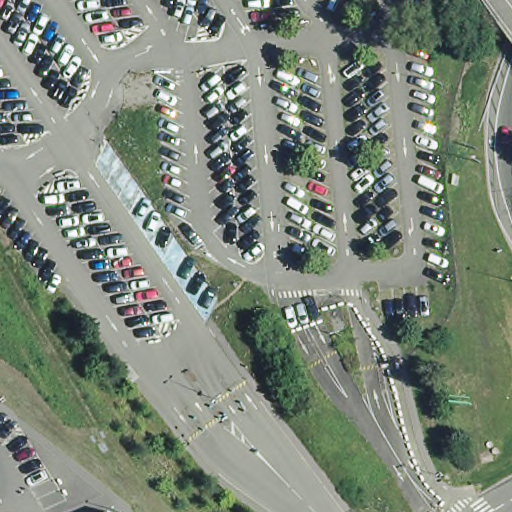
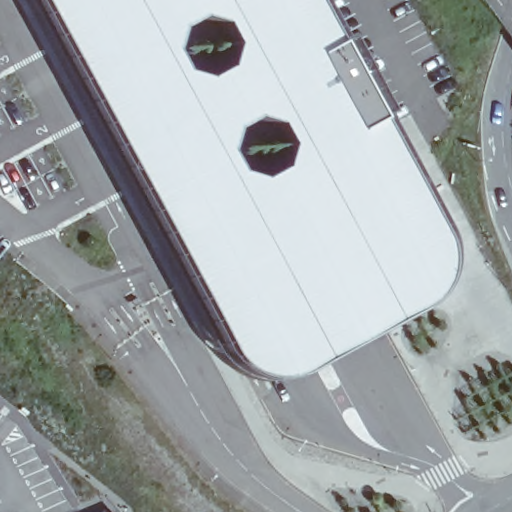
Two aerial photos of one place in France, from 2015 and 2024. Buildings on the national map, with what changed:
new [(443,256),(443,268),(440,280),(435,291),(426,300),(416,307),(290,376),(276,380),(266,379),(255,377),(242,371),(232,364),(225,353),(33,0),(308,0),(439,242),(443,256)]
unchanged [(110,511),(110,512),(108,512),(110,511)]

